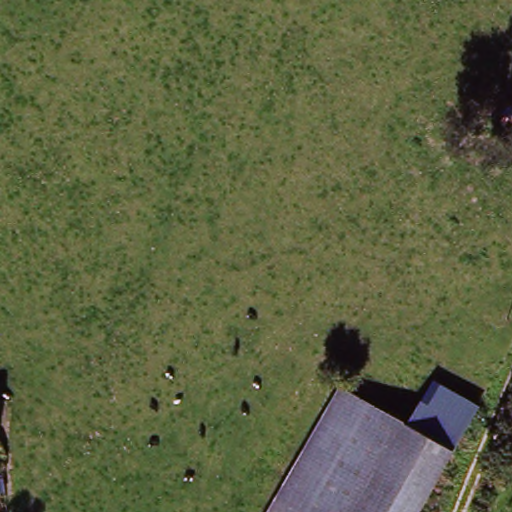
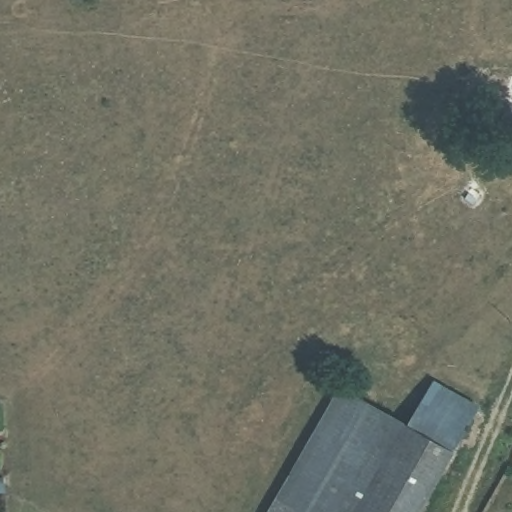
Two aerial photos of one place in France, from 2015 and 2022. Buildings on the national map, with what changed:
unchanged [(403,425),(432,381),(479,408),(418,512),(264,512),(337,388),(403,425)]

